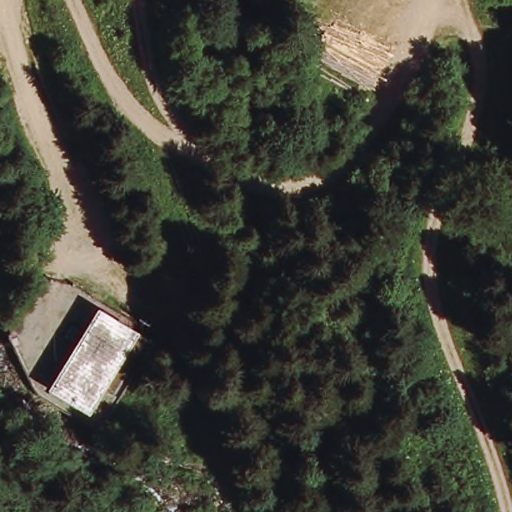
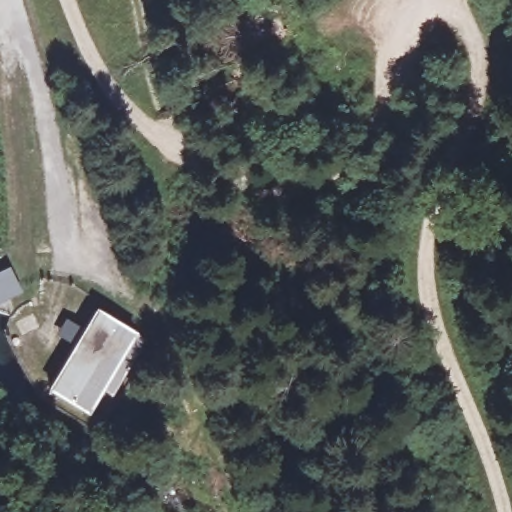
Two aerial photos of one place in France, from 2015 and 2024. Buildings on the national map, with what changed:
new [(8,265),(22,292),(0,302),(0,269),(8,265)]
unchanged [(67,396),(45,390),(60,360),(75,334),(87,312),(131,336),(97,405),(67,396)]

